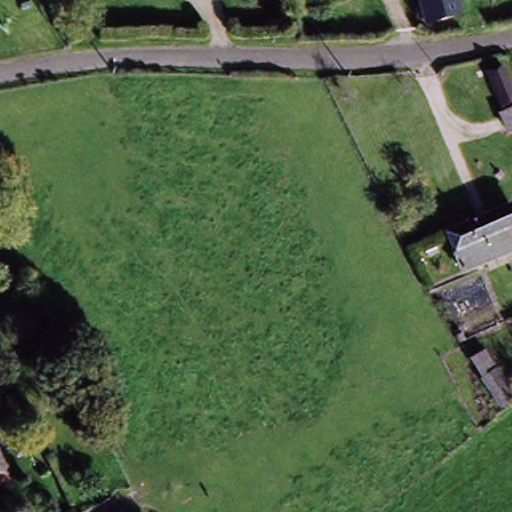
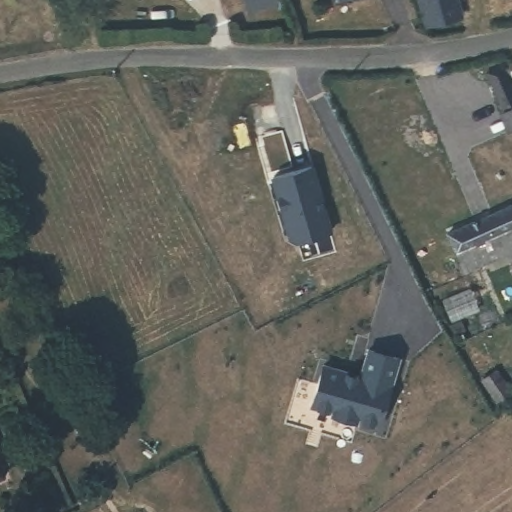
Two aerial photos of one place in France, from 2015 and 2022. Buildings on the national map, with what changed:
unchanged [(334,0),(338,0),(334,1),(334,0)]
unchanged [(425,29),(416,0),(460,0),(463,15),(425,29)]
unchanged [(485,80),(501,72),(512,92),(512,102),(500,109),(485,80)]
unchanged [(500,117),(512,110),(512,129),(507,132),(500,117)]
new [(335,229),(290,240),(271,175),(317,163),(335,229)]
unchanged [(512,220),(512,247),(457,272),(440,232),(504,203),(512,220)]
new [(402,357),(381,429),(356,421),(355,424),(331,417),(332,414),(312,408),(324,363),(361,373),(368,349),(402,357)]
unchanged [(492,406),(485,390),(497,383),(505,399),(492,406)]
unchanged [(6,471),(0,473),(0,456),(6,471)]

